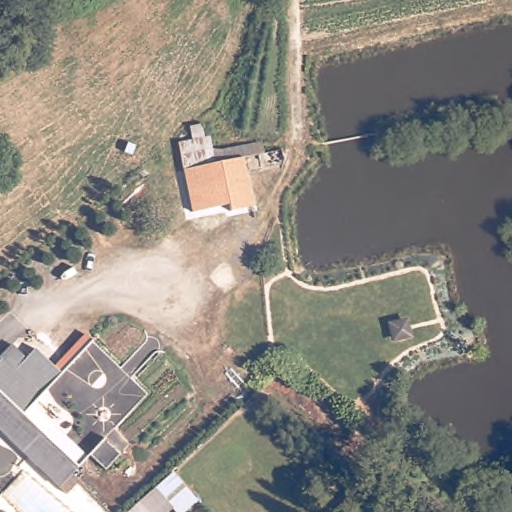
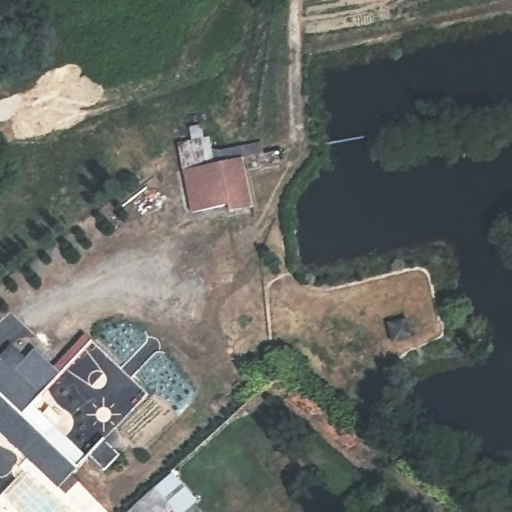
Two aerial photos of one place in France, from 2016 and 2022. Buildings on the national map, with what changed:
unchanged [(192,140),(190,125),(205,122),(208,137),(213,136),(215,147),(260,141),(262,155),(245,157),(254,206),(231,212),(217,207),(193,211),(178,143),(192,140)]
unchanged [(27,358),(36,348),(63,374),(34,405),(87,459),(60,488),(0,430),(0,357),(11,346),(27,358)]
unchanged [(159,487),(161,487),(180,508),(175,512),(146,512),(139,505),(159,487)]

